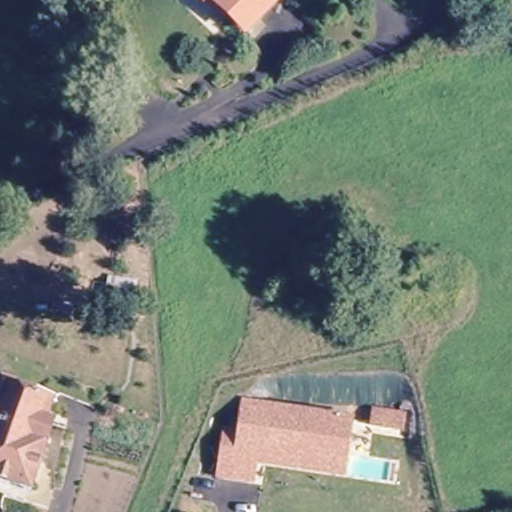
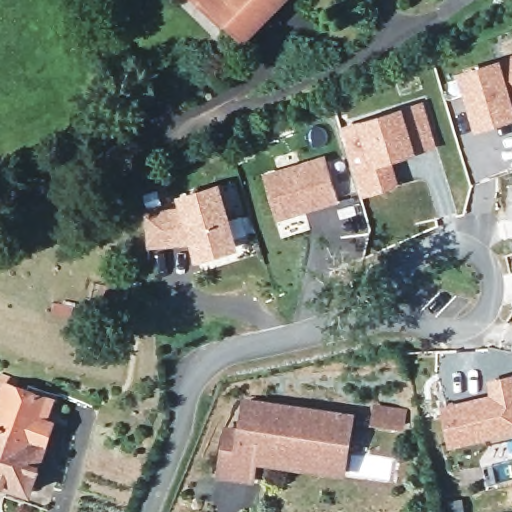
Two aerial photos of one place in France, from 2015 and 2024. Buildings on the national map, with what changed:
unchanged [(201,0),(277,0),(243,35),(225,15),(220,20),(213,12),(201,0)]
new [(475,131),(457,70),(500,57),(512,54),(512,120),(475,131)]
new [(357,120),(401,106),(422,101),(437,146),(415,153),(390,160),(397,185),(360,196),(339,126),(357,120)]
new [(340,204),(278,221),(263,171),(325,154),(340,204)]
new [(220,181),(240,247),(196,260),(190,244),(179,204),(176,195),(220,181)]
new [(158,189),(164,208),(179,204),(190,244),(149,250),(142,214),(146,212),(141,194),(158,189)]
unchanged [(52,393),(51,396),(46,411),(45,414),(53,417),(46,437),(47,437),(30,487),(0,477),(0,393),(5,380),(0,378),(0,374),(2,368),(19,373),(15,381),(52,393)]
new [(451,446),(441,405),(490,393),(486,381),(512,376),(512,431),(451,446)]
unchanged [(355,414),(345,477),(257,465),(254,483),(214,480),(222,427),(237,427),(242,396),(355,414)]

